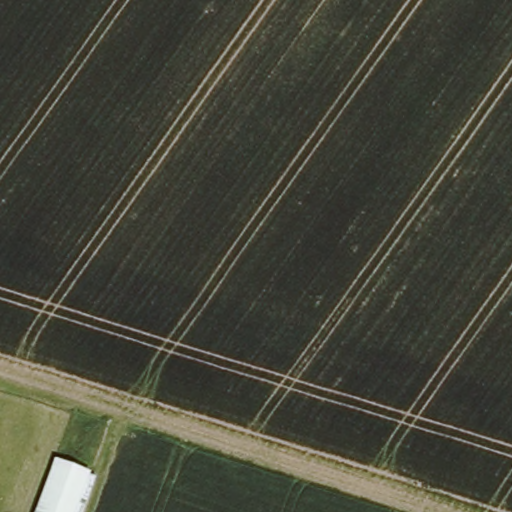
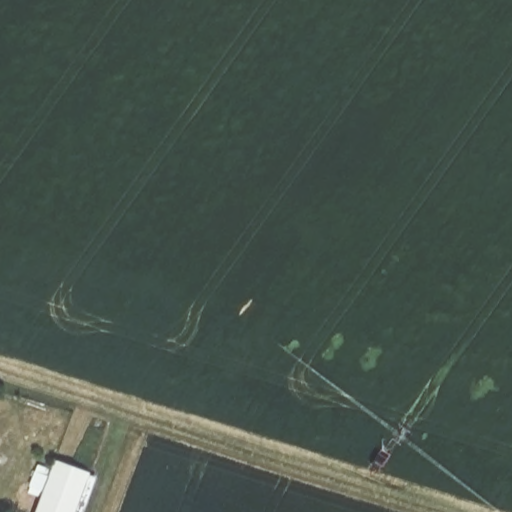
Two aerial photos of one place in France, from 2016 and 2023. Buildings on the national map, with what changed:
unchanged [(29,512),(50,452),(87,464),(71,512),(29,512)]

